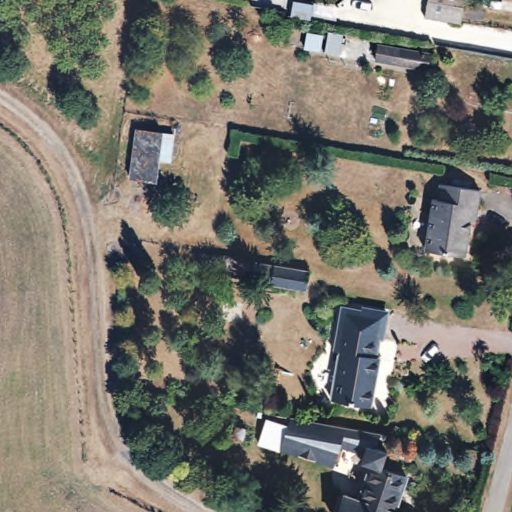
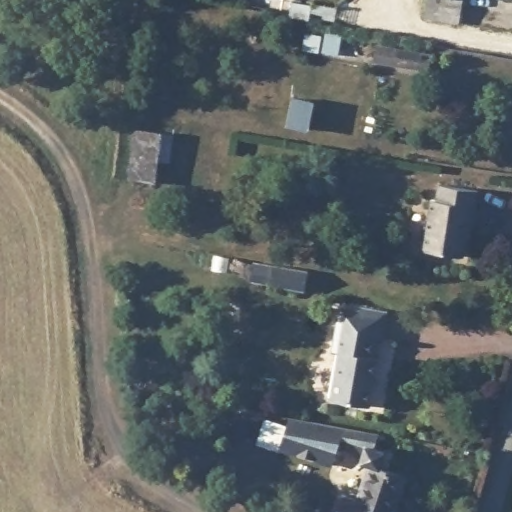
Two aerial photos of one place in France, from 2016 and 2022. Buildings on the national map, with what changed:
unchanged [(462,21),(427,16),(430,0),(465,0),(462,21)]
unchanged [(430,71),(421,70),(379,62),(381,47),(424,55),(433,56),(430,71)]
unchanged [(163,134),(154,184),(129,181),(138,130),(163,134)]
unchanged [(480,192),(474,225),(469,225),(464,257),(424,251),(433,199),(437,200),(441,184),(480,192)]
unchanged [(302,277),(299,296),(264,291),(267,271),(302,277)]
unchanged [(391,313),(388,335),(381,334),(378,353),(382,354),(373,405),(332,397),(340,347),(337,346),(344,306),(391,313)]
unchanged [(359,497),(361,491),(370,463),(361,460),(364,451),(339,443),(334,457),(280,440),(289,414),(382,431),(377,448),(384,451),(379,466),(404,475),(395,502),(392,509),(398,511),(402,512),(336,512),(344,492),(359,497)]

